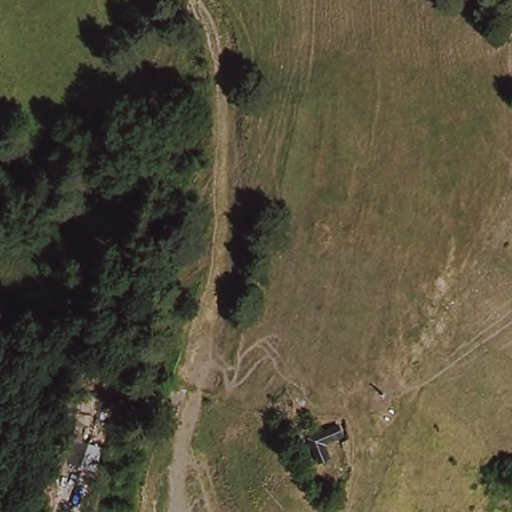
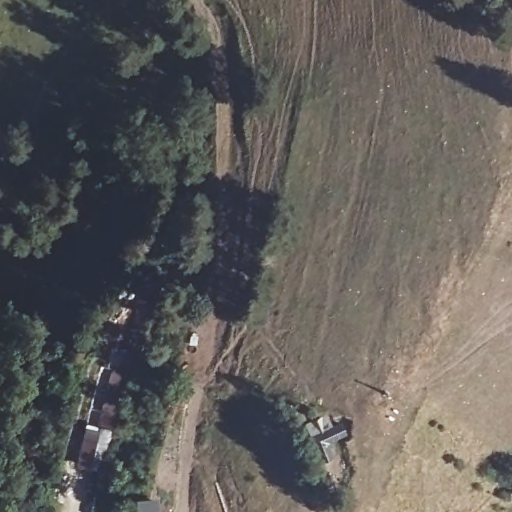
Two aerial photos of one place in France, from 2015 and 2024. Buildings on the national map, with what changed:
unchanged [(350,411),(354,423),(337,429),(343,445),(330,450),(320,423),(350,411)]

